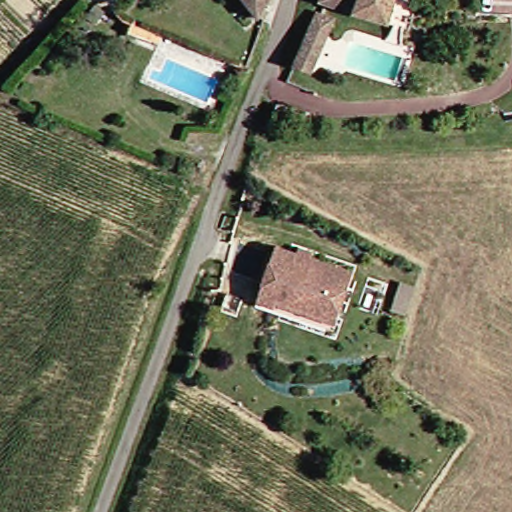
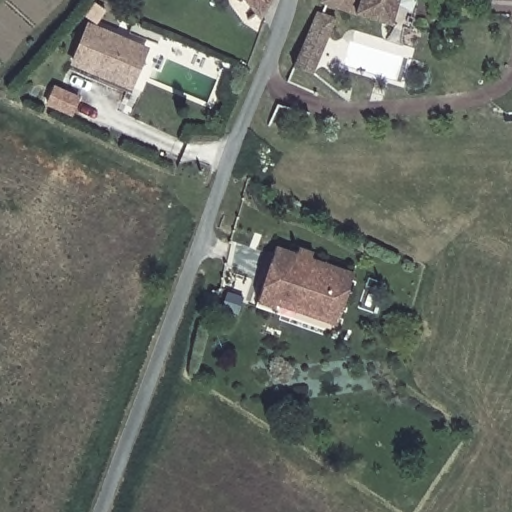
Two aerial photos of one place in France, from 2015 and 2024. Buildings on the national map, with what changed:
unchanged [(271,9),(269,18),(254,0),(276,0),(271,9)]
unchanged [(329,2),(329,0),(403,0),(397,26),(329,2)]
unchanged [(300,65),(323,12),(341,19),(322,73),(300,65)]
new [(69,65),(87,23),(148,48),(131,91),(69,65)]
unchanged [(281,302),(278,311),(261,305),(282,246),(360,273),(344,317),(341,323),(281,302)]

